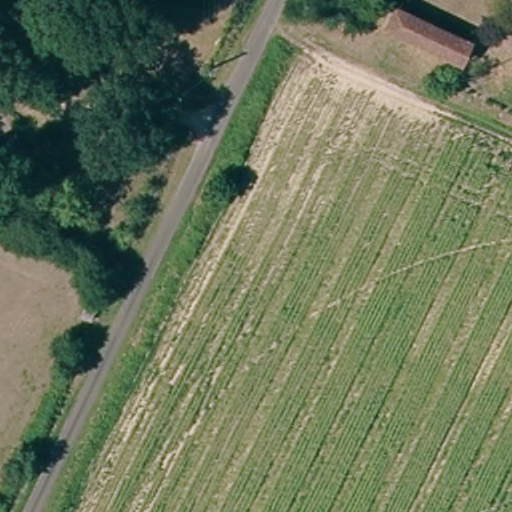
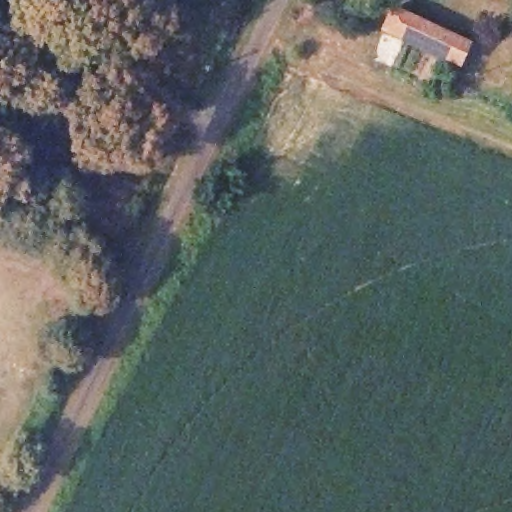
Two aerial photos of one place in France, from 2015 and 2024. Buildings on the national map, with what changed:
unchanged [(392,9),(470,40),(461,64),(384,33),(392,9)]

